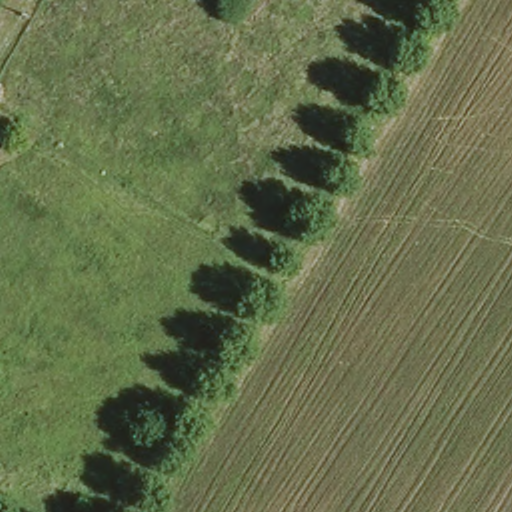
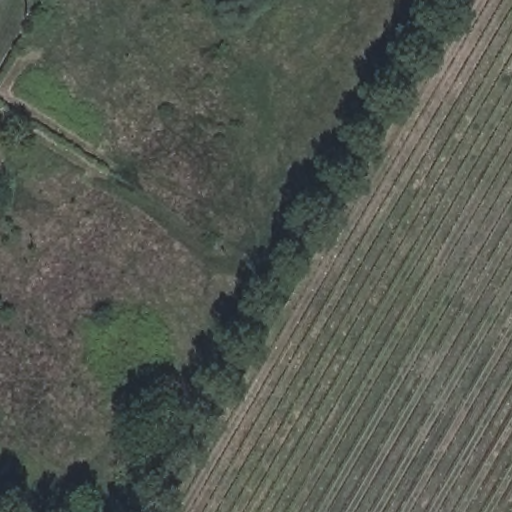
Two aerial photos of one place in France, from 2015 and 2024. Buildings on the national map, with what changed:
[]

